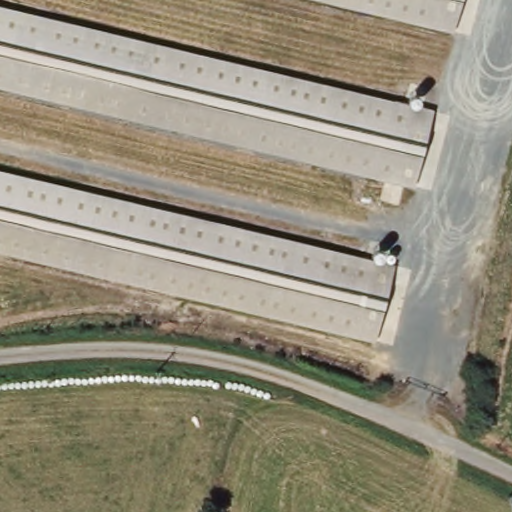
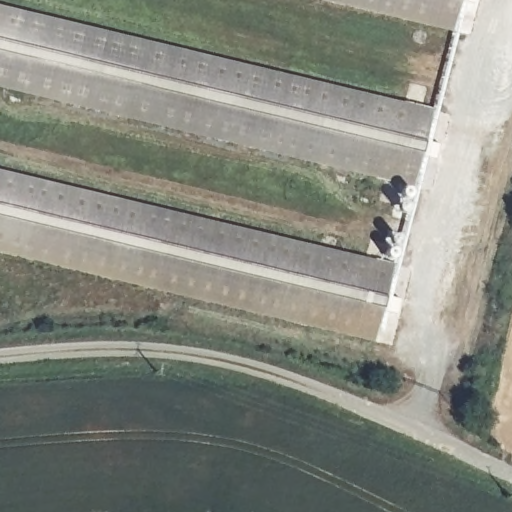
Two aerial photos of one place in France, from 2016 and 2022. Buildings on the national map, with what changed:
unchanged [(341,0),(459,0),(452,27),(341,0)]
unchanged [(230,138),(0,82),(0,2),(431,106),(411,181),(230,138)]
unchanged [(0,246),(0,165),(394,259),(376,335),(0,246)]

